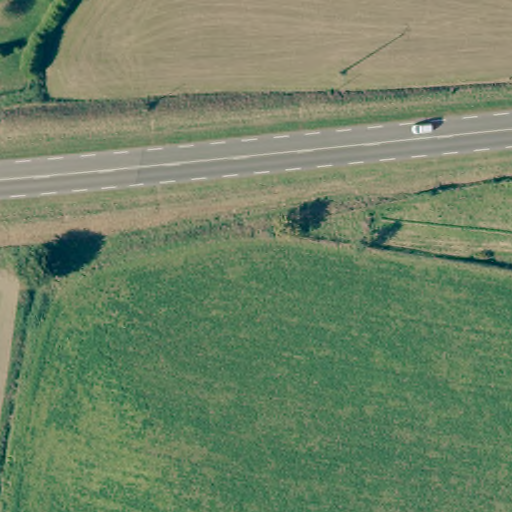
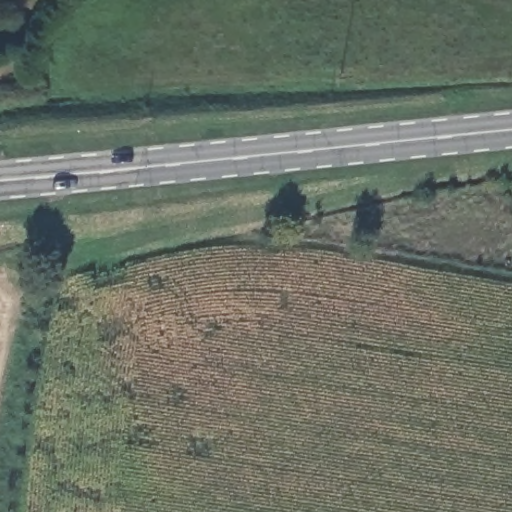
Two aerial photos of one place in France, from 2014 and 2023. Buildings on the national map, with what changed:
[]

